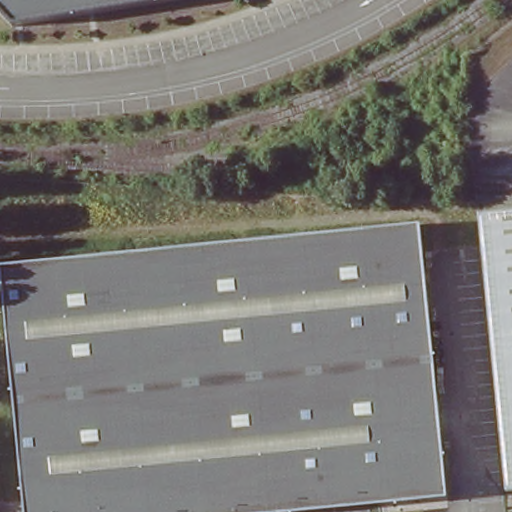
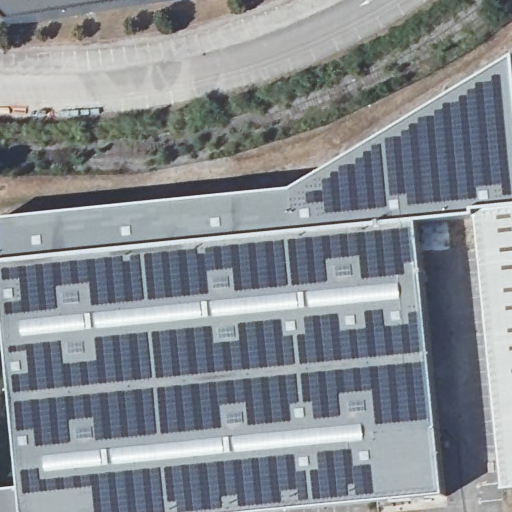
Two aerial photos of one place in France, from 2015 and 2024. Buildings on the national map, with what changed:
unchanged [(14,22),(0,7),(0,0),(167,0),(14,22)]
new [(127,251),(1,264),(0,252),(0,221),(294,193),(512,62),(512,216),(415,223),(127,251)]
unchanged [(502,455),(479,219),(512,216),(512,495),(507,496),(505,486),(502,455)]
unchanged [(185,512),(19,512),(0,316),(0,264),(127,251),(415,223),(442,496),(380,503),(379,493),(185,512)]
new [(19,512),(0,512),(0,491),(17,490),(19,512)]
unchanged [(380,503),(287,512),(185,512),(379,493),(380,503)]

